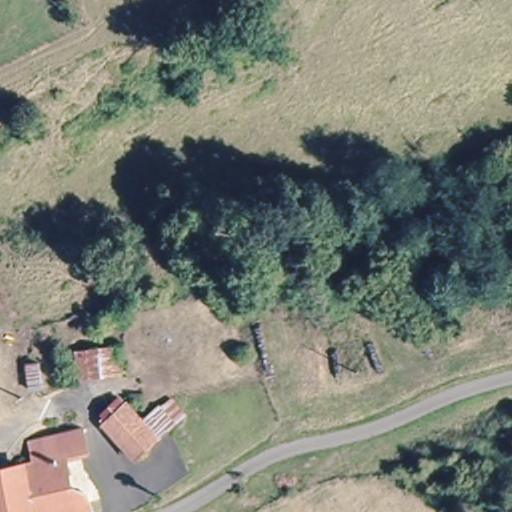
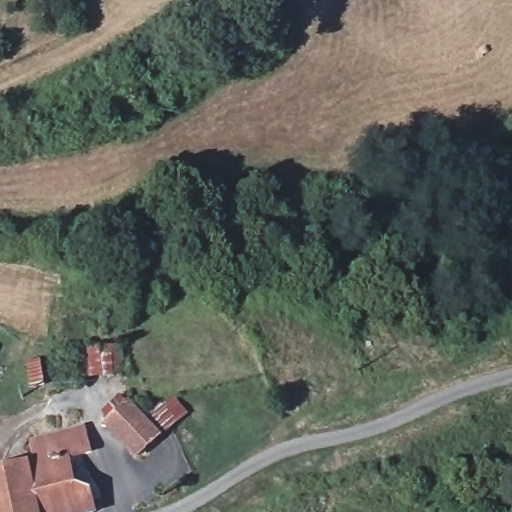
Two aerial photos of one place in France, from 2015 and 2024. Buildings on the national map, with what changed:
unchanged [(83,376),(85,350),(127,346),(126,372),(83,376)]
unchanged [(93,424),(126,396),(145,417),(174,397),(186,417),(165,436),(131,459),(93,424)]
unchanged [(32,462),(45,460),(40,440),(81,432),(88,452),(66,455),(78,496),(86,494),(92,512),(32,512),(20,465),(32,462)]
unchanged [(20,465),(32,512),(0,512),(0,470),(20,465)]

